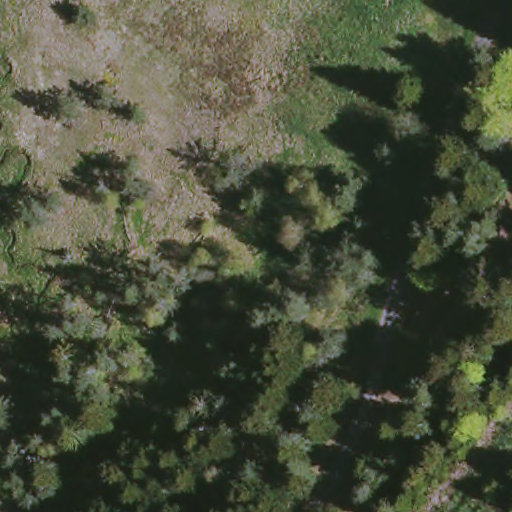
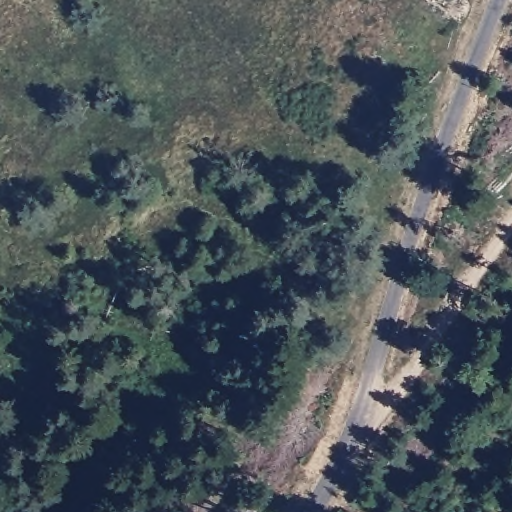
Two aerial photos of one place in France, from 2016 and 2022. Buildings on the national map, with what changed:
unchanged [(397,159),(391,169),(384,164),(390,155),(397,159)]

